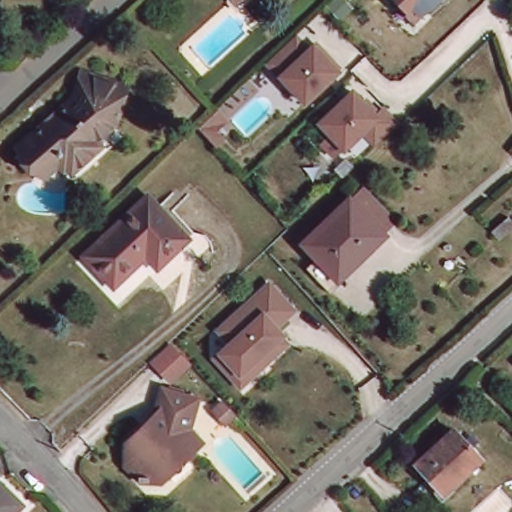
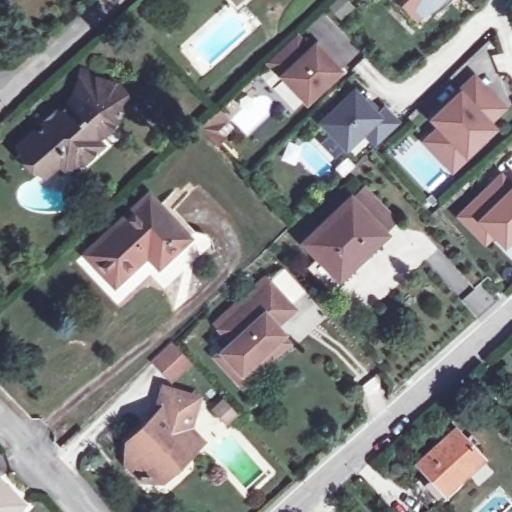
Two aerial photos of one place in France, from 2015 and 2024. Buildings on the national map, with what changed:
unchanged [(238,0),(240,0),(239,1),(238,0)]
unchanged [(402,0),(428,0),(415,14),(402,0)]
unchanged [(304,45),(311,39),(335,69),(299,101),(277,75),(262,57),(295,34),(304,45)]
unchanged [(18,151),(70,103),(80,77),(125,91),(118,115),(114,118),(110,131),(94,145),(99,151),(70,176),(60,165),(44,179),(18,151)]
new [(427,145),(432,141),(442,130),(435,123),(470,89),(477,82),(488,94),(504,111),(487,126),(492,131),(455,166),(452,170),(427,145)]
unchanged [(372,110),(381,105),(395,123),(370,146),(362,136),(341,151),(315,119),(352,88),(372,110)]
new [(477,234),(462,218),(501,179),(512,190),(512,235),(504,244),(494,234),(485,242),(477,234)]
unchanged [(304,243),(350,198),(364,186),(395,221),(382,233),(362,253),(359,250),(334,275),(304,243)]
unchanged [(112,283),(87,254),(147,195),(185,237),(157,264),(145,252),(112,283)]
unchanged [(277,251),(260,268),(255,262),(272,245),(277,251)]
unchanged [(269,280),(298,310),(280,328),(287,335),(282,339),(290,345),(241,391),(210,359),(216,353),(227,345),(215,328),(269,280)]
unchanged [(159,367),(175,352),(195,372),(179,388),(159,367)]
unchanged [(200,453),(168,485),(154,484),(154,485),(144,485),(144,482),(130,467),(131,449),(149,431),(162,418),(170,394),(202,403),(193,433),(207,447),(200,453)]
unchanged [(221,401),(234,415),(224,424),(212,410),(221,401)]
unchanged [(442,493),(415,463),(452,429),(479,458),(442,493)]
unchanged [(13,512),(0,512),(0,483),(21,504),(13,512)]

